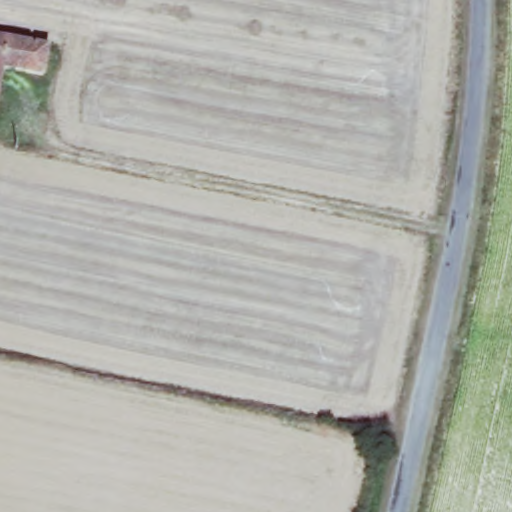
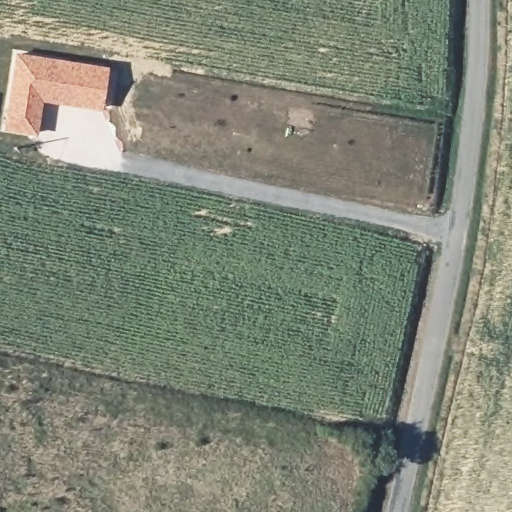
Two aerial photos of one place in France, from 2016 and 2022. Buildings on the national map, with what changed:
demolished [(56,48),(51,81),(5,74),(1,98),(0,109),(0,39),(56,48)]
new [(101,101),(44,91),(40,126),(4,128),(17,54),(112,64),(101,101)]

